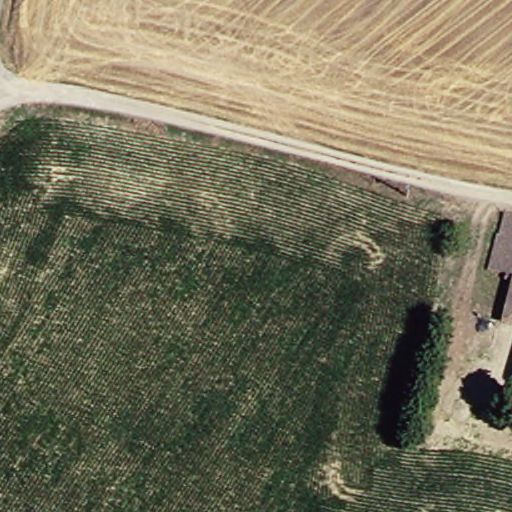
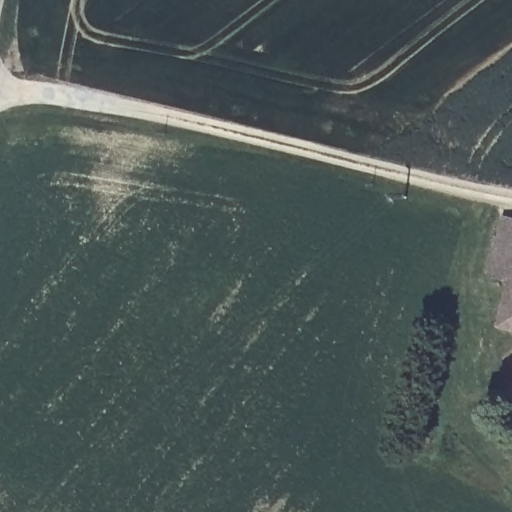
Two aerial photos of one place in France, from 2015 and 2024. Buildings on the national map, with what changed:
unchanged [(512,327),(470,317),(495,216),(512,219),(512,327)]
unchanged [(459,336),(464,322),(467,323),(474,325),(471,340),(463,337),(459,336)]

